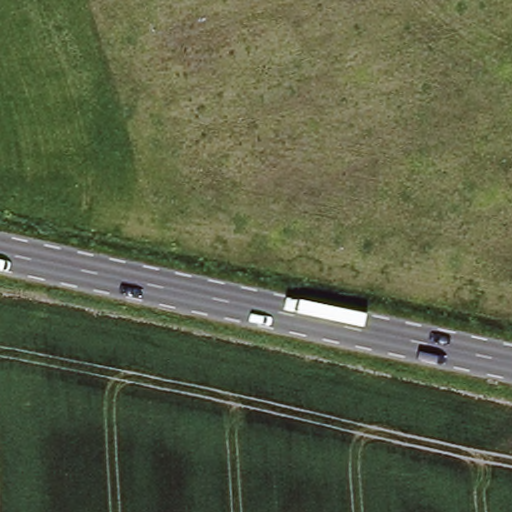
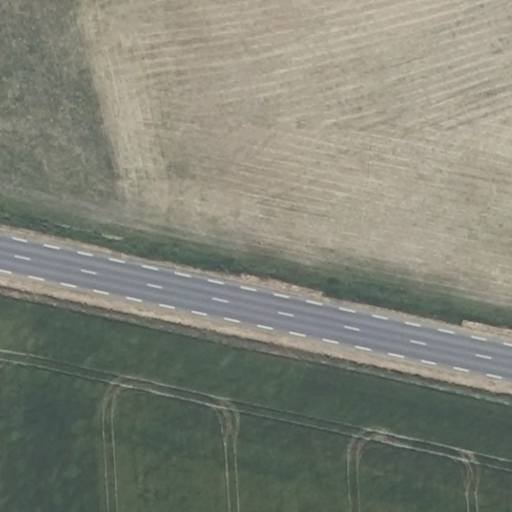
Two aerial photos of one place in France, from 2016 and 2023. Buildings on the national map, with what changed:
[]

